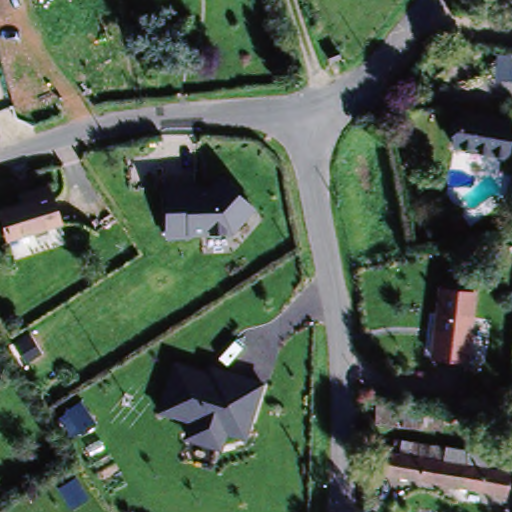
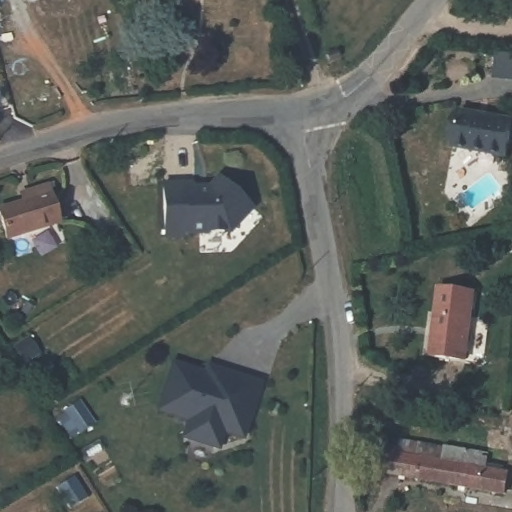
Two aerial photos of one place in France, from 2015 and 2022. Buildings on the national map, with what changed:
unchanged [(340,59),(340,60),(330,64),(327,56),(337,52),(340,59)]
unchanged [(507,156),(454,147),(460,112),(512,121),(512,124),(507,156)]
unchanged [(169,188),(207,191),(219,182),(252,219),(227,240),(171,242),(169,188)]
unchanged [(16,195),(25,193),(44,187),(55,223),(2,239),(0,233),(0,209),(19,203),(16,195)]
unchanged [(437,286),(471,294),(466,317),(434,313),(437,286)]
unchanged [(460,360),(425,356),(430,312),(466,317),(460,360)]
unchanged [(247,442),(227,438),(222,451),(179,442),(184,424),(153,414),(170,359),(204,368),(205,362),(264,384),(247,442)]
unchanged [(384,453),(385,453),(387,440),(439,449),(439,447),(461,451),(460,456),(477,459),(475,469),(503,474),(500,494),(381,474),(384,453)]

